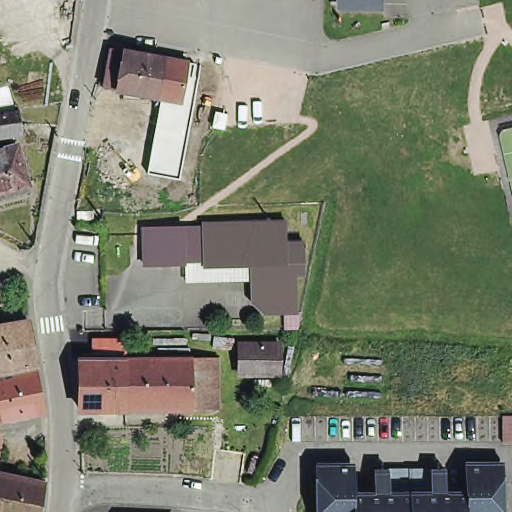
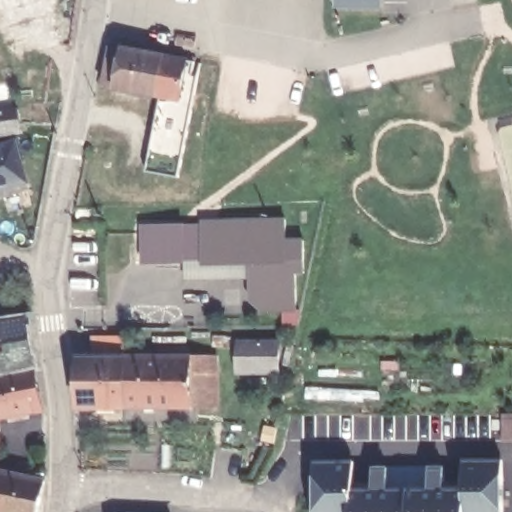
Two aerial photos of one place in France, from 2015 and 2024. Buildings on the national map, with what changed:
unchanged [(337,9),(338,0),(386,0),(386,10),(337,9)]
unchanged [(164,107),(165,98),(159,96),(120,90),(107,87),(115,49),(127,51),(166,59),(189,62),(187,74),(191,75),(199,76),(195,104),(192,103),(183,101),(182,110),(190,110),(187,135),(160,132),(164,107)]
unchanged [(0,120),(16,117),(18,135),(19,139),(0,142),(0,120)]
unchanged [(0,157),(15,152),(27,190),(0,197),(0,157)]
unchanged [(181,262),(142,264),(140,225),(179,224),(179,226),(183,226),(198,225),(198,221),(282,219),(282,242),(283,255),(247,257),(247,277),(181,279),(181,273),(181,262)]
unchanged [(299,242),(300,274),(293,274),(293,313),(260,314),(248,300),(247,277),(247,257),(283,255),(282,242),(299,242)]
unchanged [(0,376),(0,330),(27,325),(33,370),(0,376)]
unchanged [(237,348),(277,348),(277,378),(237,377),(237,348)]
unchanged [(127,363),(194,362),(195,412),(127,413),(127,363)]
unchanged [(214,362),(215,412),(195,412),(194,362),(214,362)]
unchanged [(127,413),(83,412),(84,365),(127,363),(127,413)]
unchanged [(40,418),(0,426),(0,381),(32,375),(40,418)]
unchanged [(512,415),(512,443),(504,443),(504,415),(512,415)]
unchanged [(417,490),(429,490),(430,499),(444,499),(444,490),(465,490),(465,467),(501,466),(501,470),(501,512),(414,512),(417,490)]
unchanged [(387,467),(418,467),(432,467),(445,467),(445,482),(432,483),(417,483),(387,483),(375,483),(375,467),(387,467)]
unchanged [(315,506),(313,468),(319,468),(352,468),(352,490),(374,490),(374,499),(387,500),(387,490),(417,490),(414,512),(315,512),(315,506)]
unchanged [(0,474),(42,482),(36,512),(0,512),(0,474)]

